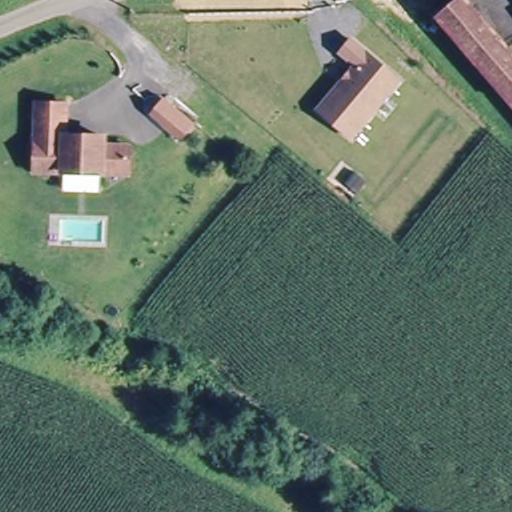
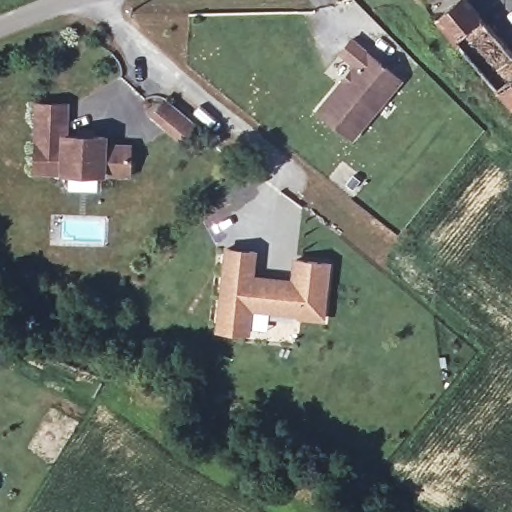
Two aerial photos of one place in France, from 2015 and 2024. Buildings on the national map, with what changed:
unchanged [(433,15),(453,0),(466,0),(512,51),(512,104),(433,15)]
unchanged [(349,139),(315,110),(352,65),(337,52),(348,39),(397,80),(349,139)]
unchanged [(164,124),(153,115),(167,99),(178,107),(195,122),(182,139),(164,124)]
unchanged [(103,146),(129,147),(128,176),(34,172),(37,105),(65,105),(64,137),(103,139),(103,146)]
new [(258,250),(255,275),(290,279),(292,260),(331,263),(324,325),(297,322),(298,316),(267,314),(265,331),(251,329),(250,335),(215,330),(224,247),(258,250)]

